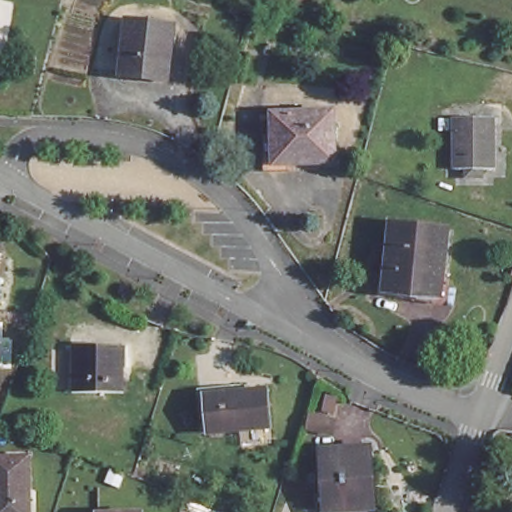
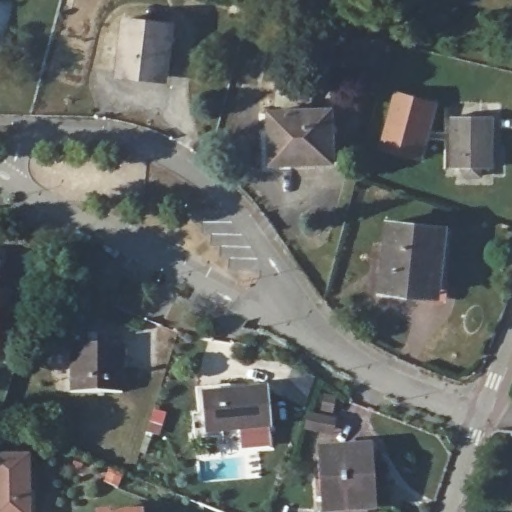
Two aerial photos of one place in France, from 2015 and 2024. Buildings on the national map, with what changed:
unchanged [(173,25),(167,78),(121,73),(125,19),(173,25)]
new [(380,149),(395,92),(437,103),(423,160),(380,149)]
unchanged [(328,107),(329,161),(267,161),(265,109),(328,107)]
unchanged [(493,112),(492,168),(483,167),(483,175),(461,174),(462,165),(452,165),(454,111),(493,112)]
unchanged [(446,229),(440,295),(384,290),(391,224),(446,229)]
unchanged [(128,339),(127,389),(76,389),(76,338),(128,339)]
unchanged [(265,426),(205,428),(201,390),(264,385),(265,426)]
unchanged [(368,505),(323,507),(323,452),(367,451),(368,505)]
unchanged [(32,512),(0,512),(0,456),(25,455),(26,489),(32,489),(32,512)]

